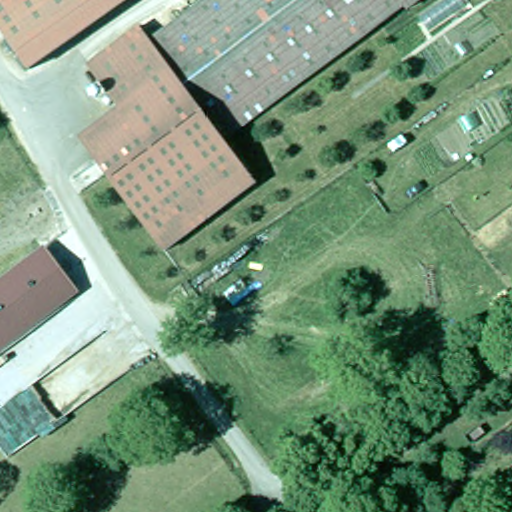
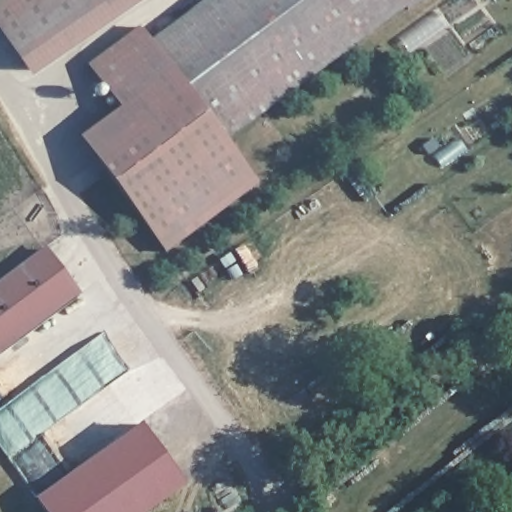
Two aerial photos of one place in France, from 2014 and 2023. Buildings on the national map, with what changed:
unchanged [(21,51),(17,45),(0,21),(0,0),(96,0),(21,51)]
unchanged [(32,67),(21,51),(96,0),(132,0),(32,67)]
unchanged [(253,178),(238,189),(177,233),(160,245),(150,231),(128,201),(127,200),(115,184),(92,152),(78,134),(78,133),(119,103),(102,80),(101,78),(86,57),(126,27),(137,20),(150,36),(199,0),(372,0),(263,78),(268,86),(274,95),(221,134),(225,139),(247,170),(253,178)]
unchanged [(0,346),(0,281),(46,247),(71,282),(77,290),(0,346)]
new [(181,485),(142,512),(46,512),(35,496),(138,423),(181,485)]

